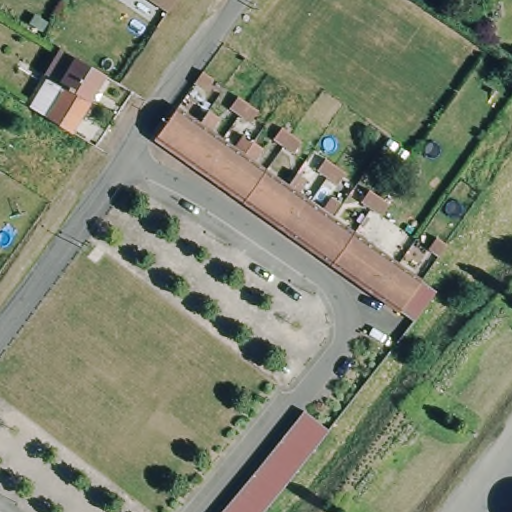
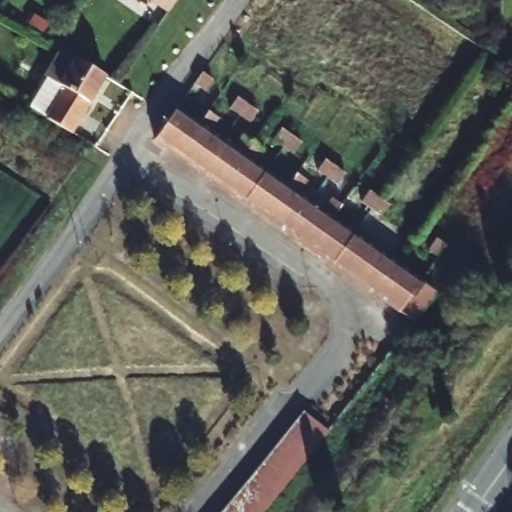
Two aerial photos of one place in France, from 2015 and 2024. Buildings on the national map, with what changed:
unchanged [(152,0),(178,0),(170,12),(152,0)]
unchanged [(107,75),(73,132),(55,121),(38,110),(56,80),(52,78),(68,51),(107,75)]
unchanged [(210,76),(201,87),(192,80),(200,69),(210,76)]
unchanged [(248,120),(238,112),(228,105),(236,94),(246,101),(256,108),(248,120)]
unchanged [(181,158),(155,139),(179,109),(186,114),(204,126),(181,158)]
unchanged [(213,113),(224,121),(215,134),(226,142),(203,174),(181,158),(204,126),(213,113)]
unchanged [(295,152),(285,145),(275,138),(282,127),(292,134),(302,141),(295,152)]
unchanged [(240,152),(249,139),(259,146),(250,159),(227,191),(203,174),(226,142),(240,152)]
unchanged [(259,146),(269,153),(260,166),(272,175),(250,207),(227,191),(250,159),(259,146)]
unchanged [(340,184),(330,177),(320,170),(327,159),(337,166),(347,173),(340,184)]
unchanged [(273,224),(250,207),(272,175),(280,180),(295,192),(273,224)]
unchanged [(295,239),(273,224),(295,192),(305,179),(315,186),(306,200),(317,207),(295,239)]
unchanged [(383,216),(373,209),(363,202),(371,190),(381,197),(391,204),(383,216)]
unchanged [(329,216),(338,203),(349,210),(340,223),(317,255),(295,239),(317,207),(329,216)]
unchanged [(339,271),(317,255),(340,223),(354,233),(361,239),(339,271)]
unchanged [(448,245),(442,255),(441,257),(431,250),(438,238),(448,245)]
unchanged [(421,330),(406,319),(382,302),(363,288),(339,271),(361,239),(370,244),(385,256),(398,265),(405,270),(415,277),(428,287),(444,298),(440,304),(421,330)]
unchanged [(315,449),(306,461),(297,473),(287,486),(277,498),(276,497),(251,478),(253,475),(261,465),(271,452),(280,440),(298,418),(323,438),(315,449)]
unchanged [(230,501),(241,489),(251,478),(276,497),(277,498),(267,511),(266,511),(266,512),(222,512),(230,502),(230,501)]

